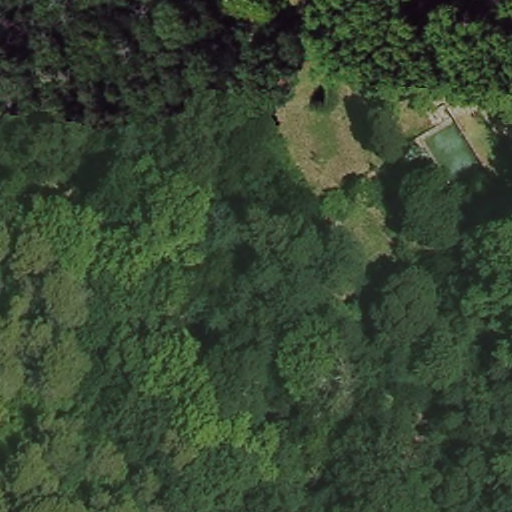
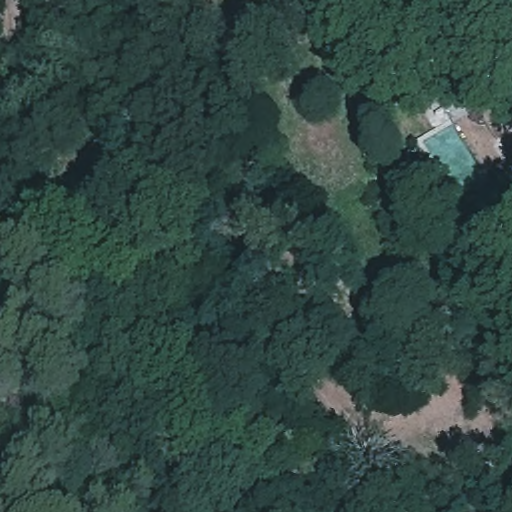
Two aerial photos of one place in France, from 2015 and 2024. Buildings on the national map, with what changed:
unchanged [(488,0),(512,0),(512,21),(506,25),(488,0)]

